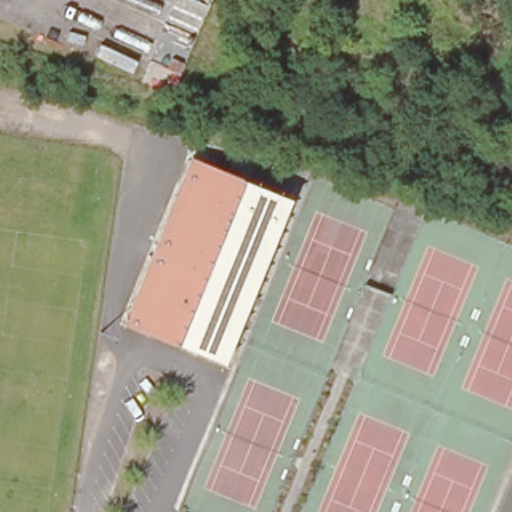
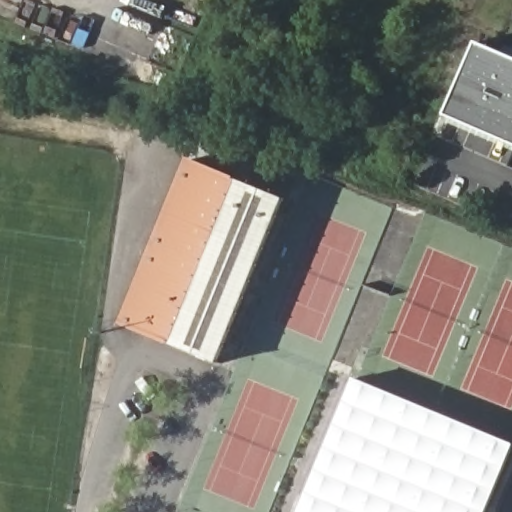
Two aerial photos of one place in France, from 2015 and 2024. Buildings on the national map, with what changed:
new [(512,144),(442,113),(475,40),(512,56),(512,144)]
unchanged [(187,156),(287,197),(221,361),(122,321),(187,156)]
new [(512,159),(512,167),(509,165),(512,159)]
new [(353,377),(512,442),(512,450),(486,512),(297,512),(353,377)]

